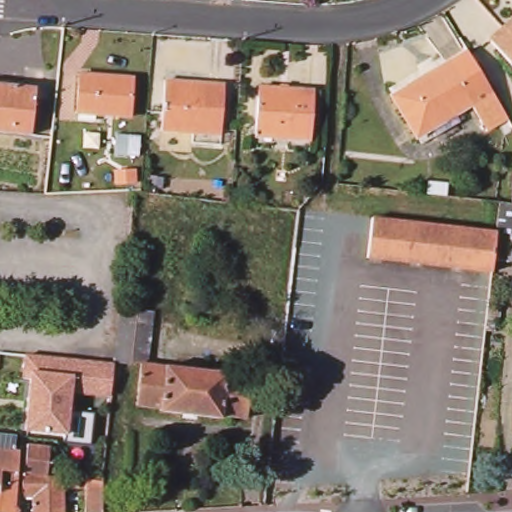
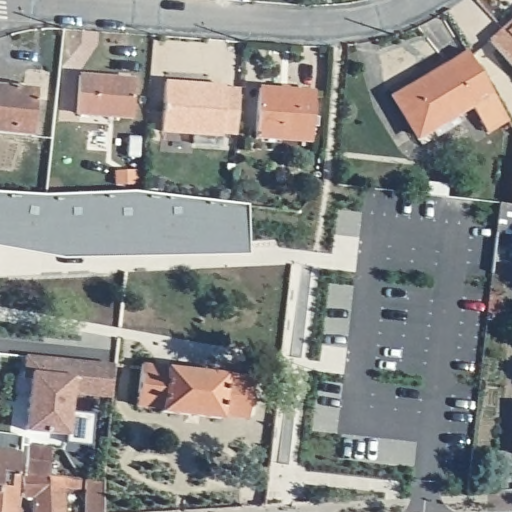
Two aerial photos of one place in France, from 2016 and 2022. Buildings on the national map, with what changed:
unchanged [(489,38),(503,25),(507,29),(512,25),(512,64),(489,38)]
unchanged [(471,108),(468,105),(416,136),(394,98),(447,68),(444,64),(466,51),(484,83),(492,96),(471,108)]
unchanged [(133,115),(76,111),(80,76),(135,80),(133,115)]
unchanged [(188,144),(189,134),(159,131),(163,81),(223,86),(219,136),(218,146),(188,144)]
unchanged [(0,129),(0,83),(36,87),(31,133),(0,129)]
unchanged [(313,99),(309,142),(253,137),(257,94),(313,99)]
unchanged [(135,172),(134,185),(118,183),(118,170),(135,172)]
new [(0,247),(0,192),(43,195),(132,191),(247,204),(247,254),(61,257),(0,247)]
demolished [(367,258),(372,218),(495,232),(491,272),(367,258)]
unchanged [(115,359),(112,392),(71,388),(67,430),(25,425),(31,374),(27,373),(24,373),(26,350),(115,359)]
unchanged [(249,414),(224,411),(224,414),(163,407),(163,404),(139,401),(144,362),(144,361),(148,362),(253,374),(249,414)]
unchanged [(0,433),(16,436),(15,452),(19,452),(18,458),(16,473),(14,512),(0,512),(0,433)]
unchanged [(67,488),(67,512),(34,512),(34,498),(24,497),(24,474),(26,474),(26,446),(49,446),(50,478),(81,479),(81,488),(67,488)]
unchanged [(88,479),(104,480),(103,512),(88,512),(88,479)]

